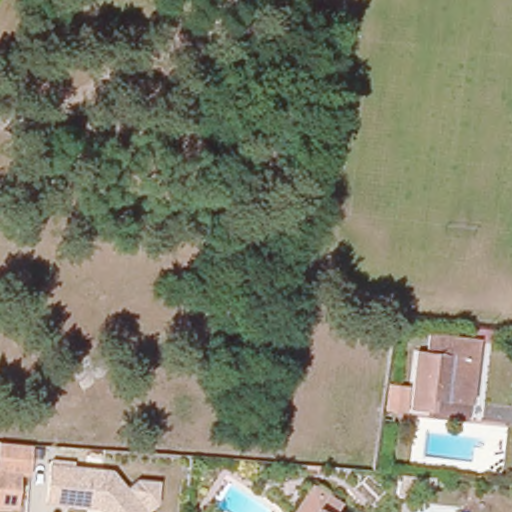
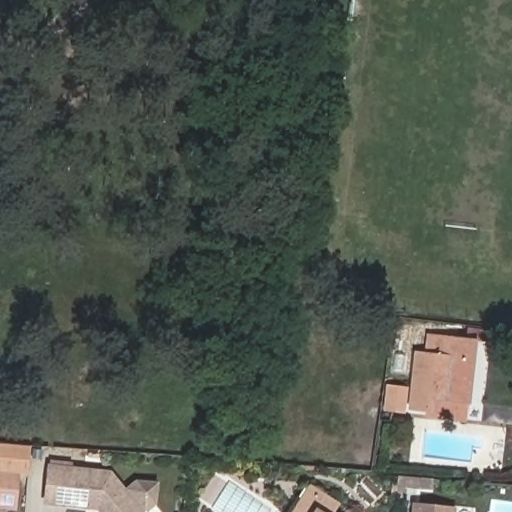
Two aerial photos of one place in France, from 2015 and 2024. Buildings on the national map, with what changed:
unchanged [(472,340),(466,401),(430,398),(428,413),(413,411),(417,381),(420,352),(426,352),(428,335),(472,340)]
unchanged [(19,450),(17,472),(0,470),(0,449),(11,450),(19,450)]
unchanged [(94,505),(44,500),(48,466),(109,471),(142,512),(96,512),(94,505)]
unchanged [(4,512),(0,512),(0,474),(6,475),(4,512)]
unchanged [(312,507),(309,512),(285,512),(303,484),(330,501),(323,512),(320,512),(312,507)]
unchanged [(312,507),(320,512),(309,512),(312,507)]

